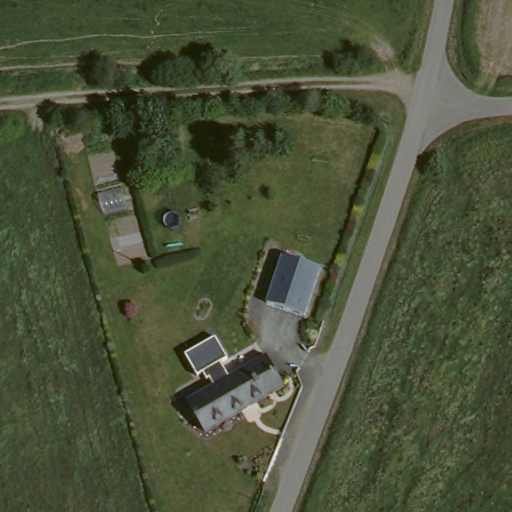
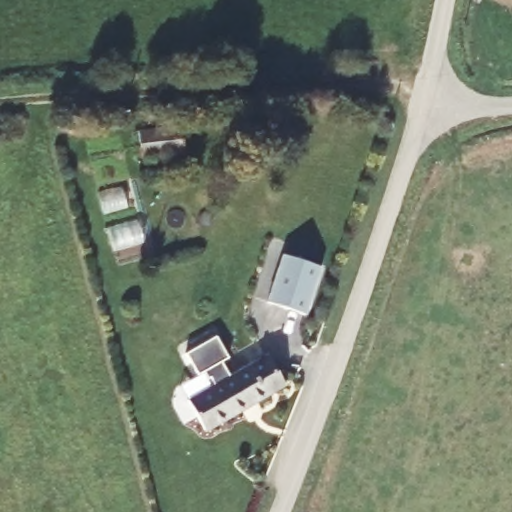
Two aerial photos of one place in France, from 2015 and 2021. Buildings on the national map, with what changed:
unchanged [(127,147),(127,126),(144,124),(143,110),(185,107),(190,153),(134,162),(127,147)]
unchanged [(292,249),(327,266),(308,312),(273,294),(292,249)]
unchanged [(213,426),(195,396),(206,390),(216,385),(221,383),(217,375),(215,376),(211,369),(205,372),(194,349),(226,333),(237,356),(230,360),(237,375),(263,362),(275,356),(290,383),(213,426)]

